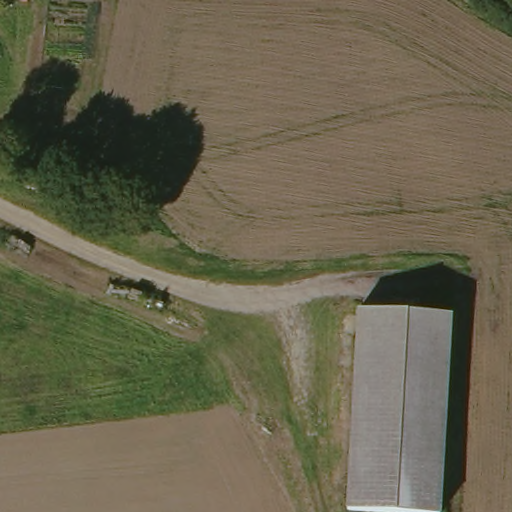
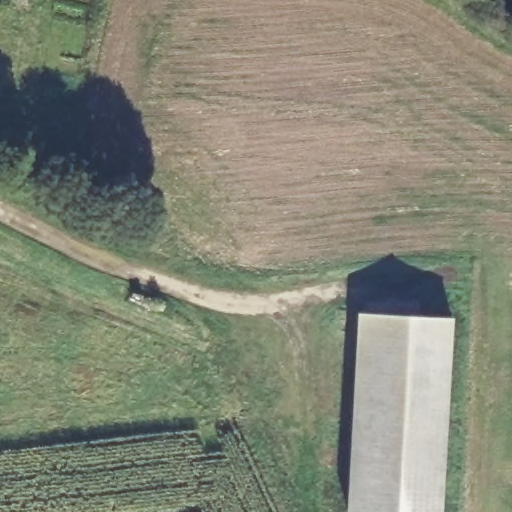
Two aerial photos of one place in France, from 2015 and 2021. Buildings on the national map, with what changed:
unchanged [(445,512),(358,512),(346,511),(358,308),(456,311),(445,512)]

